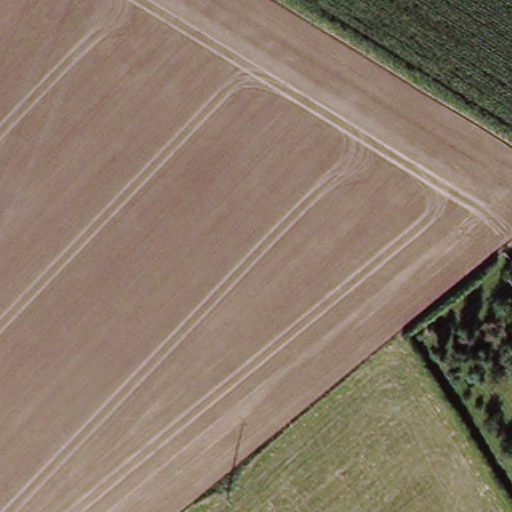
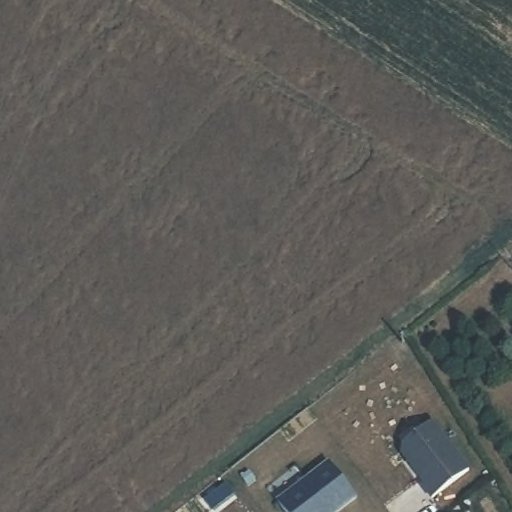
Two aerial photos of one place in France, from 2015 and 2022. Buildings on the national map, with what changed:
new [(405,453),(435,431),(471,479),(435,507),(425,493),(427,491),(404,460),(405,453)]
new [(330,466),(357,501),(342,512),(283,512),(278,505),(330,466)]

